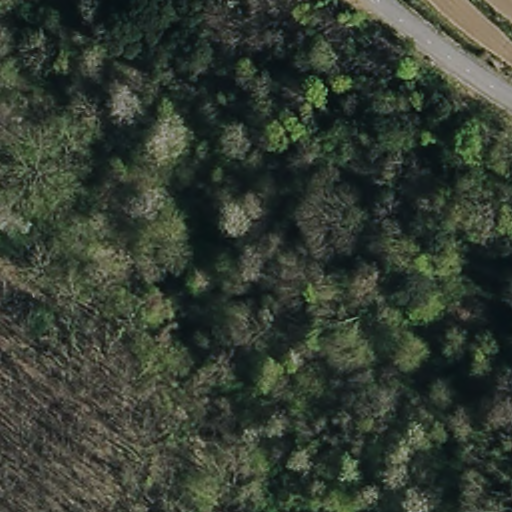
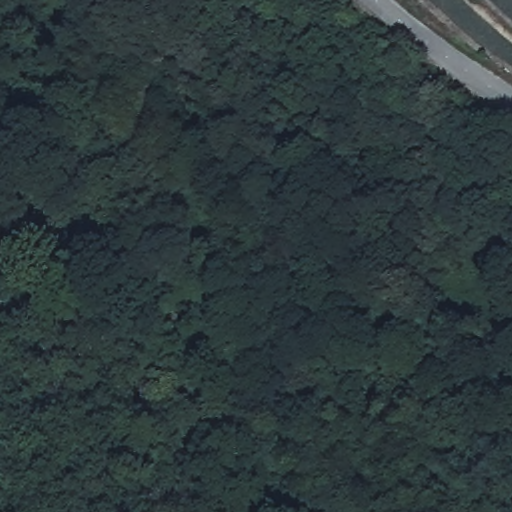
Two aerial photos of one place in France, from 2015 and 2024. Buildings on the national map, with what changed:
[]

